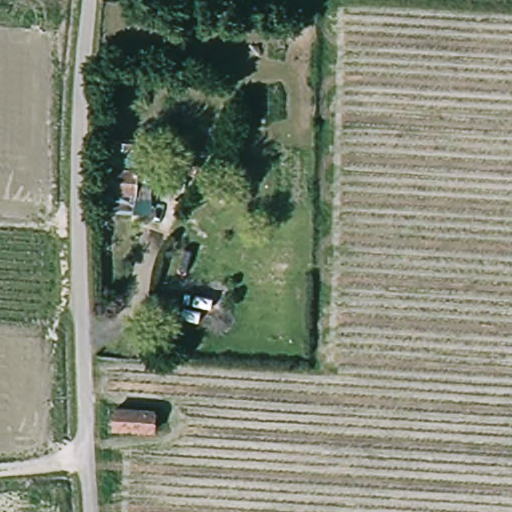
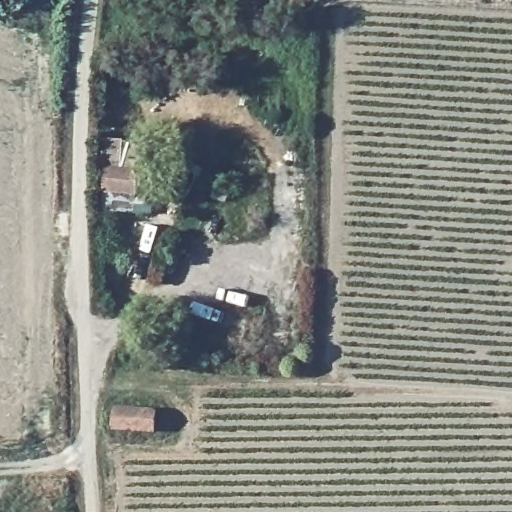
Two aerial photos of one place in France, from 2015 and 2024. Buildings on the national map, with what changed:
unchanged [(139,193),(105,190),(106,166),(141,169),(139,193)]
unchanged [(159,433),(119,430),(121,408),(161,410),(159,433)]

